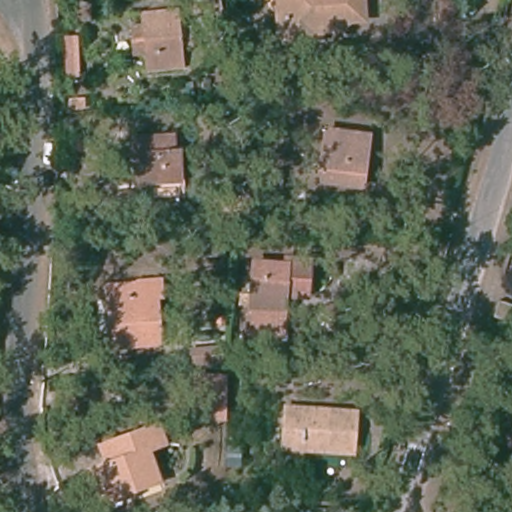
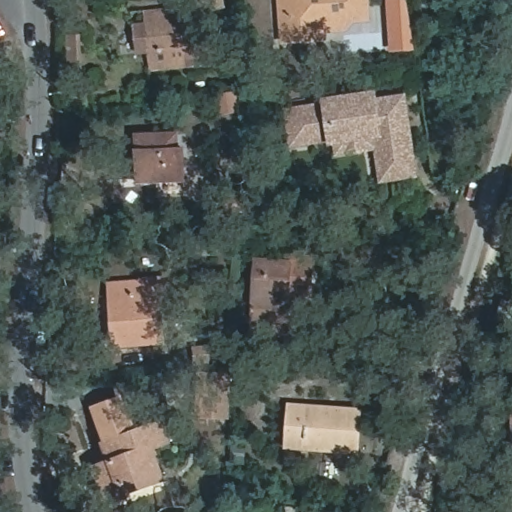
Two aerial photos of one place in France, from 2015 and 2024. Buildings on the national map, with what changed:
unchanged [(224,9),(195,12),(192,0),(222,0),(224,9)]
unchanged [(323,34),(282,37),(278,4),(274,1),(274,0),(286,0),(288,26),(322,24),(323,34)]
unchanged [(288,26),(286,0),(366,0),(367,15),(348,16),(348,22),(322,24),(288,26)]
new [(386,0),(410,0),(412,50),(389,51),(386,0)]
unchanged [(143,14),(179,10),(181,26),(201,24),(203,44),(182,46),(184,66),(149,70),(143,14)]
new [(284,107),(321,104),(320,98),(376,90),(377,97),(406,92),(418,179),(381,184),(375,152),(334,156),(333,146),(327,147),(327,142),(287,149),(284,107)]
demolished [(369,137),(366,163),(360,162),(356,187),(320,182),(327,131),(369,137)]
unchanged [(184,155),(184,158),(186,185),(137,187),(136,161),(141,160),(140,144),(178,142),(179,155),(184,155)]
unchanged [(286,180),(285,166),(294,165),(295,180),(286,180)]
unchanged [(250,214),(216,216),(215,193),(249,191),(250,214)]
unchanged [(217,254),(217,246),(233,245),(233,254),(217,254)]
unchanged [(315,286),(315,300),(291,297),(288,332),(267,331),(268,322),(256,322),(257,302),(246,302),(247,290),(257,291),(260,258),(292,260),(317,261),(315,286)]
unchanged [(115,280),(149,278),(166,277),(166,317),(167,340),(119,344),(117,327),(116,297),(115,280)]
unchanged [(507,303),(511,292),(512,292),(512,310),(506,308),(507,303)]
unchanged [(194,365),(193,351),(221,349),(222,363),(194,365)]
unchanged [(200,411),(198,378),(227,377),(226,405),(226,408),(225,417),(201,420),(200,411)]
unchanged [(96,472),(99,471),(115,464),(108,446),(95,410),(126,400),(140,433),(164,423),(172,447),(153,455),(165,485),(131,498),(109,507),(96,472)]
unchanged [(337,449),(284,445),(287,404),(356,410),(355,431),(353,451),(337,449)]
unchanged [(512,457),(498,424),(512,420),(512,457)]

